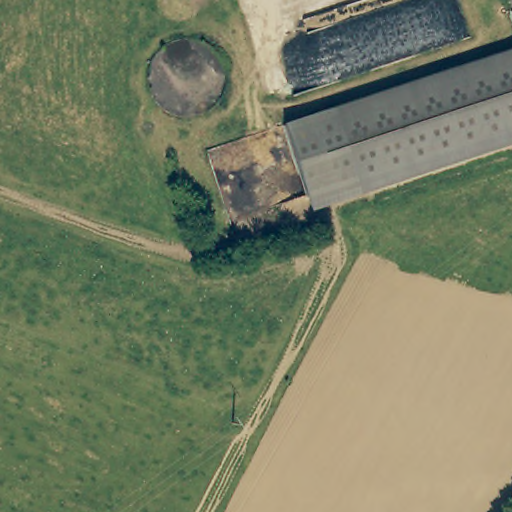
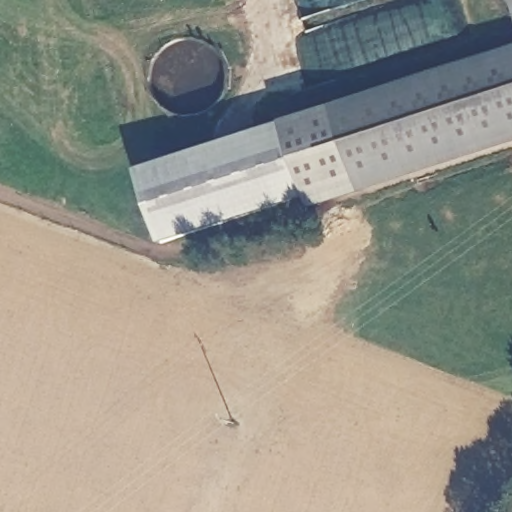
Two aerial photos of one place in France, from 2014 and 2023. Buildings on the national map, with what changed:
unchanged [(508,0),(512,0),(512,13),(508,0)]
unchanged [(282,130),(512,53),(512,131),(305,201),(282,130)]
new [(305,198),(162,244),(137,171),(280,123),(282,130),(305,198)]

